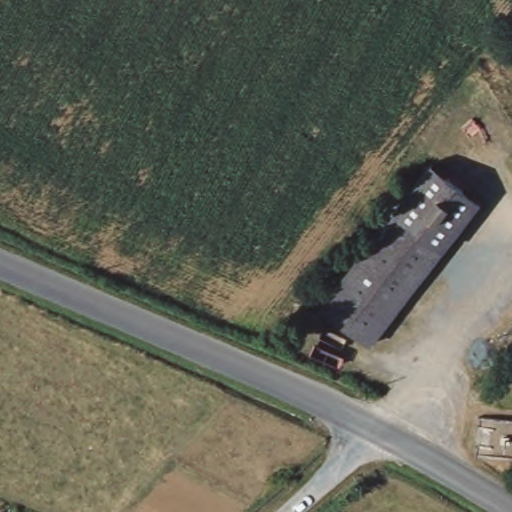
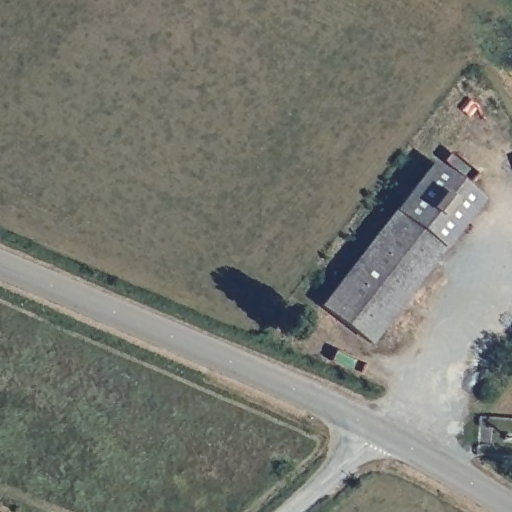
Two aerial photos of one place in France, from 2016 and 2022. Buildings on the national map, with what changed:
unchanged [(466,186),(482,199),(370,343),(321,306),(433,160),(447,171),(466,186)]

